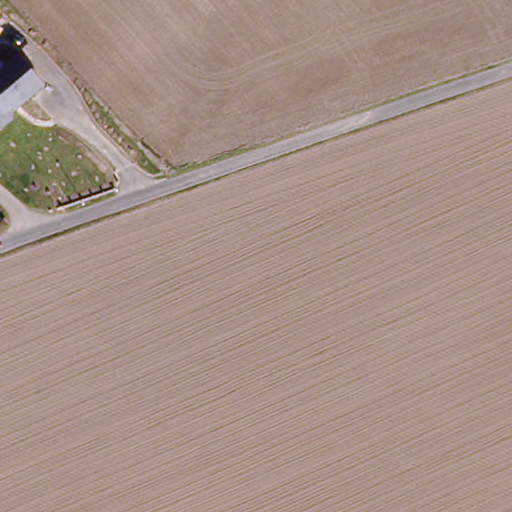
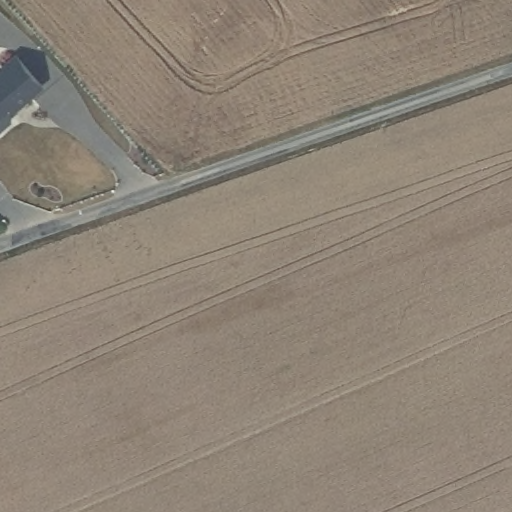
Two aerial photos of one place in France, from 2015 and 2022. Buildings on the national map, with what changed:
unchanged [(6,71),(5,70),(16,59),(43,89),(12,116),(12,123),(1,133),(0,133),(0,76),(6,71)]

